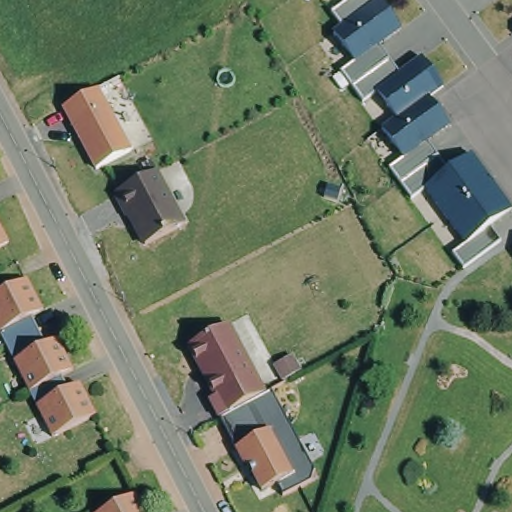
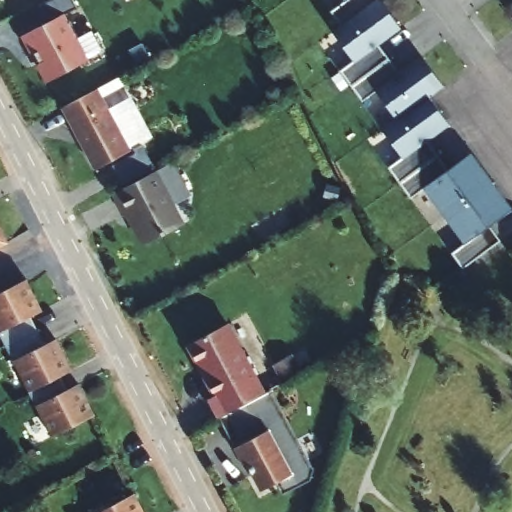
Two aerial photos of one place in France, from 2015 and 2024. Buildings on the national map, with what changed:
new [(38,8),(53,0),(73,0),(76,7),(65,13),(89,59),(45,83),(35,65),(42,61),(36,50),(30,54),(20,37),(46,23),(38,8)]
unchanged [(451,252),(465,243),(425,188),(412,199),(389,167),(403,157),(383,130),(396,120),(375,92),(362,102),(341,71),(354,62),(331,30),(340,24),(331,12),(345,1),(344,0),(379,0),(402,30),(379,46),(398,72),(421,55),(445,87),(429,99),(450,127),(428,143),(449,170),(472,152),(512,205),(512,212),(490,228),(500,241),(463,269),(451,252)]
unchanged [(130,151),(96,170),(62,108),(96,89),(130,151)]
unchanged [(183,225),(144,246),(135,228),(135,225),(130,215),(125,218),(112,194),(138,180),(154,172),(183,225)]
unchanged [(11,241),(0,248),(0,222),(11,241)]
unchanged [(28,280),(44,311),(33,317),(47,343),(60,339),(73,365),(63,374),(70,387),(81,381),(97,412),(53,435),(0,333),(0,295),(28,280)]
unchanged [(226,412),(215,418),(205,400),(211,397),(203,382),(205,381),(198,368),(196,369),(184,346),(223,325),(260,394),(226,412)]
unchanged [(289,475),(266,431),(234,448),(217,417),(226,412),(260,394),(271,388),(315,468),(310,479),(283,493),(278,481),(289,475)]
unchanged [(258,492),(243,464),(240,465),(231,449),(266,431),(289,475),(258,492)]
unchanged [(146,512),(109,512),(137,497),(146,512)]

